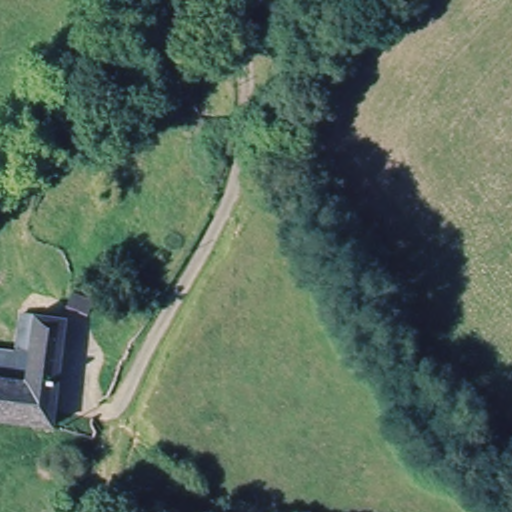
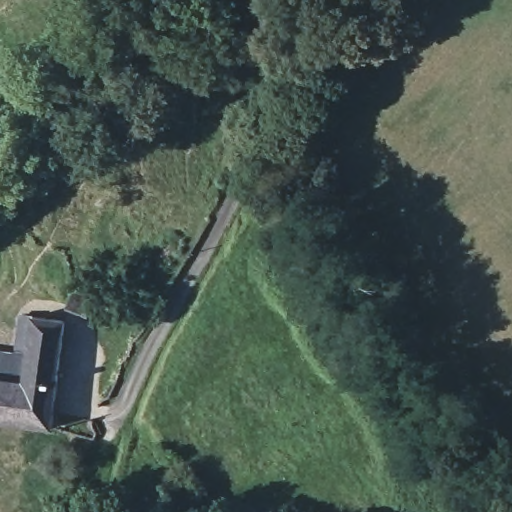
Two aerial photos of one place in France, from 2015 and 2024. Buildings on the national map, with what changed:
unchanged [(0,427),(0,365),(17,368),(18,361),(3,358),(12,319),(59,329),(38,434),(0,427)]

